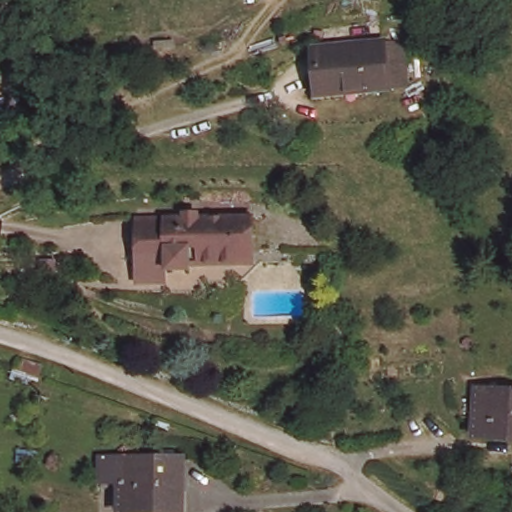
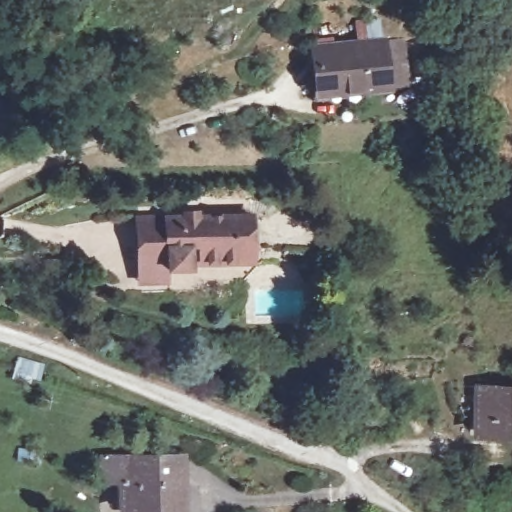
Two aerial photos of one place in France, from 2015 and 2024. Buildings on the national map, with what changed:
unchanged [(310,46),(377,41),(397,39),(401,86),(381,88),(314,94),(310,46)]
unchanged [(139,282),(139,264),(138,219),(183,218),(183,215),(199,215),(199,218),(252,217),(252,234),(252,260),(244,261),(190,262),(191,269),(167,269),(167,282),(139,282)]
unchanged [(57,260),(57,263),(57,273),(55,273),(44,273),(43,260),(55,260),(57,260)]
unchanged [(37,378),(15,372),(18,359),(41,365),(37,378)]
unchanged [(512,430),(475,428),(477,382),(512,383),(512,430)]
unchanged [(35,462),(20,461),(20,450),(36,451),(35,462)]
unchanged [(192,452),(194,507),(132,508),(132,477),(112,477),(112,453),(192,452)]

